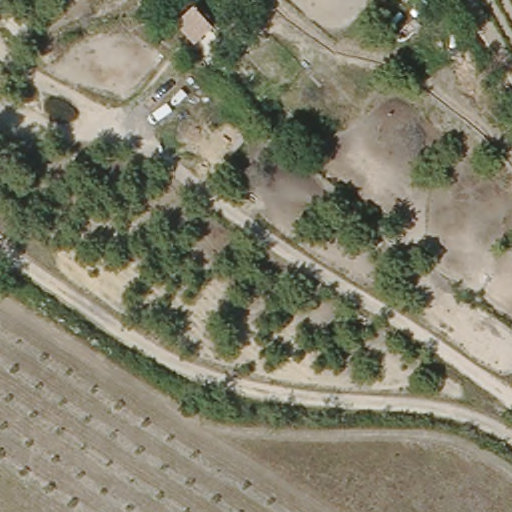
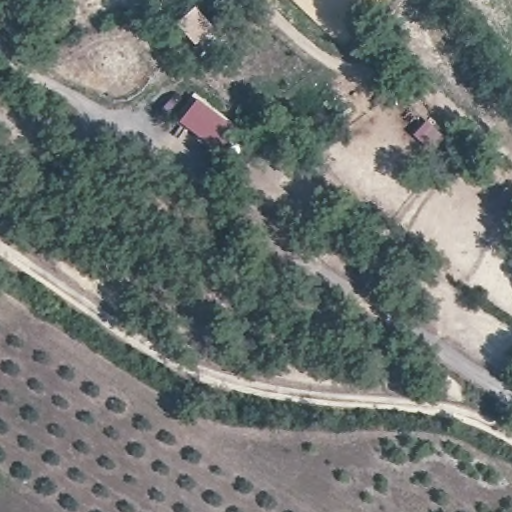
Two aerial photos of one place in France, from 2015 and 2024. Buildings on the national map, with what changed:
unchanged [(179,24),(199,6),(212,21),(192,37),(179,24)]
new [(235,129),(218,151),(178,120),(197,99),(235,129)]

